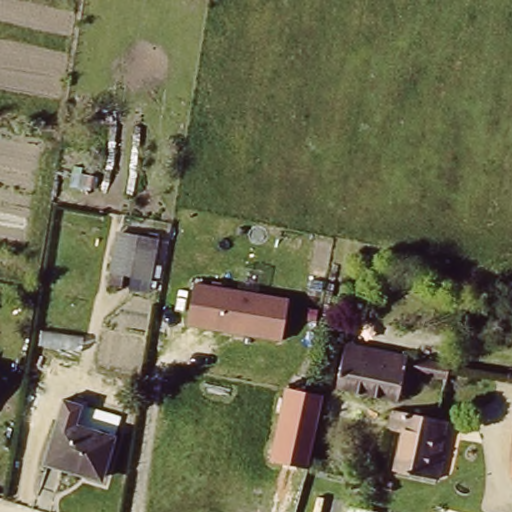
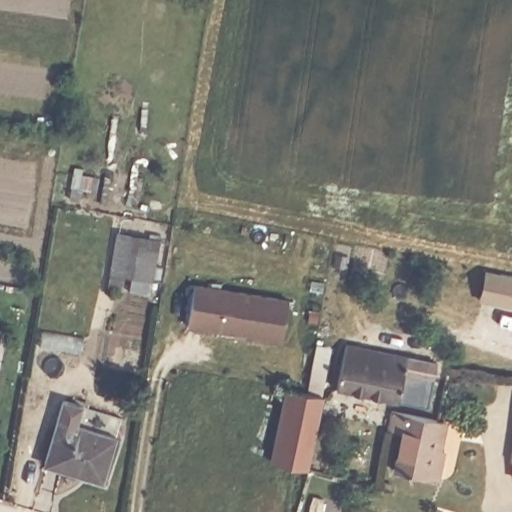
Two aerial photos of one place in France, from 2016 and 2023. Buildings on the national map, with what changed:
unchanged [(117,233),(165,238),(156,286),(132,282),(130,291),(112,288),(117,233)]
new [(494,302),(480,299),(486,270),(501,272),(512,275),(512,305),(494,302)]
unchanged [(283,340),(185,326),(190,286),(286,298),(283,340)]
unchanged [(349,344),(411,358),(402,403),(340,390),(349,344)]
unchanged [(290,391),(326,398),(312,470),(275,462),(290,391)]
unchanged [(412,418),(442,426),(438,442),(445,443),(442,456),(447,457),(442,485),(399,476),(412,418)]
unchanged [(56,426),(114,443),(102,481),(46,464),(56,426)]
unchanged [(373,512),(348,512),(350,507),(373,512)]

